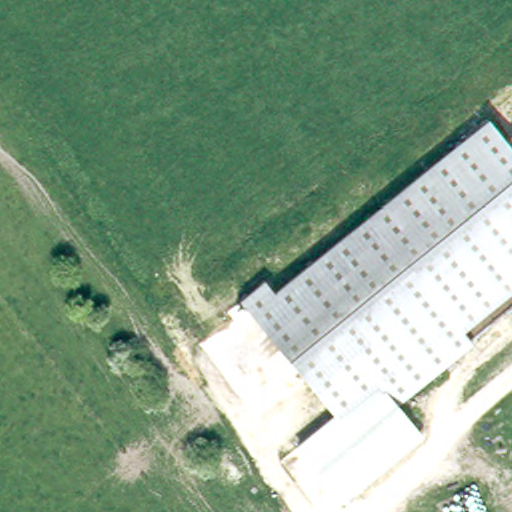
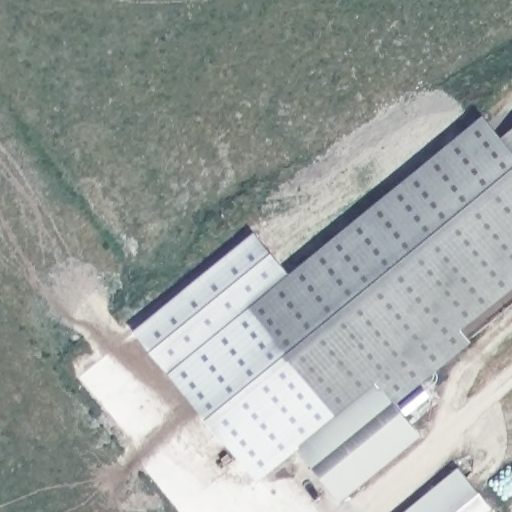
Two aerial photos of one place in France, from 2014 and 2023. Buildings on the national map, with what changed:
unchanged [(332,413),(238,297),(263,277),(272,289),(485,115),(500,135),(512,125),(512,287),(462,329),(470,341),(394,401),(420,435),(340,500),(295,447),(332,413)]
new [(258,481),(135,330),(255,230),(292,273),(272,289),(263,277),(238,297),(332,413),(295,447),(298,451),(258,481)]
new [(491,512),(405,512),(460,467),(494,510),(491,512)]

